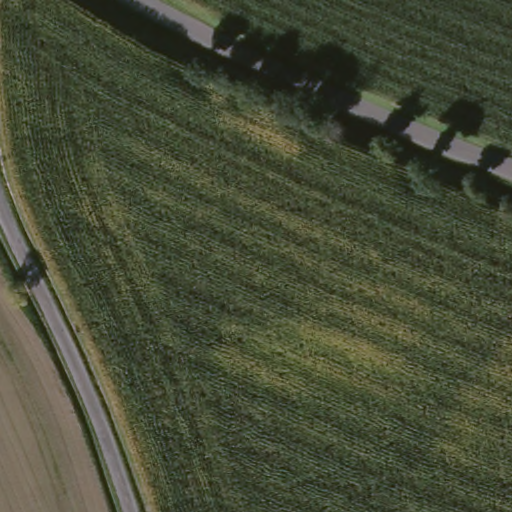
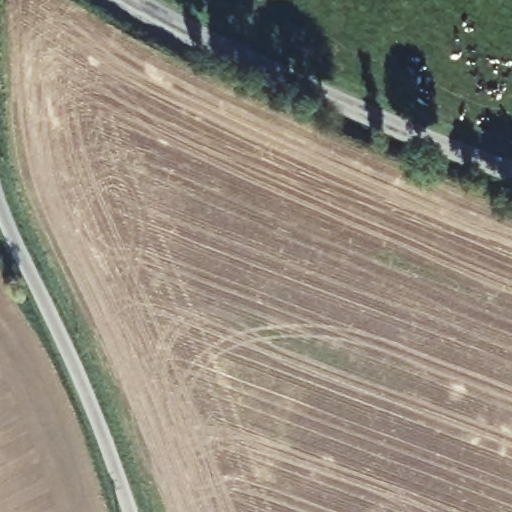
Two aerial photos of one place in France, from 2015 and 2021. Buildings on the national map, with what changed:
[]

